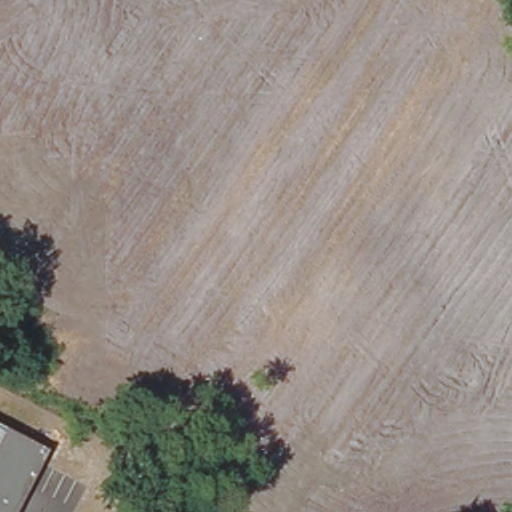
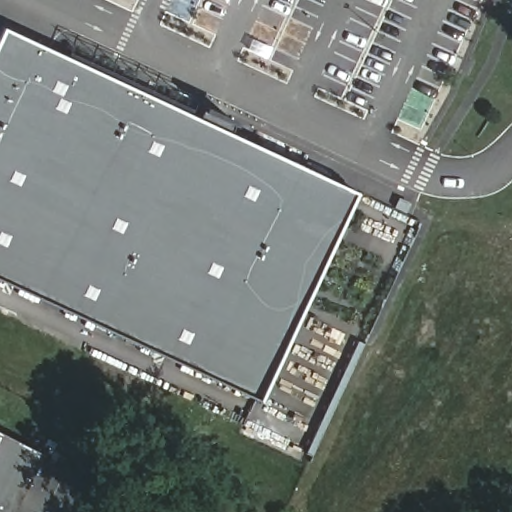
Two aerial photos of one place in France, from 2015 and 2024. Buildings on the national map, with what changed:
new [(260,397),(0,278),(0,33),(3,25),(355,192),(260,397)]
unchanged [(0,512),(0,430),(43,452),(13,512),(0,512)]

